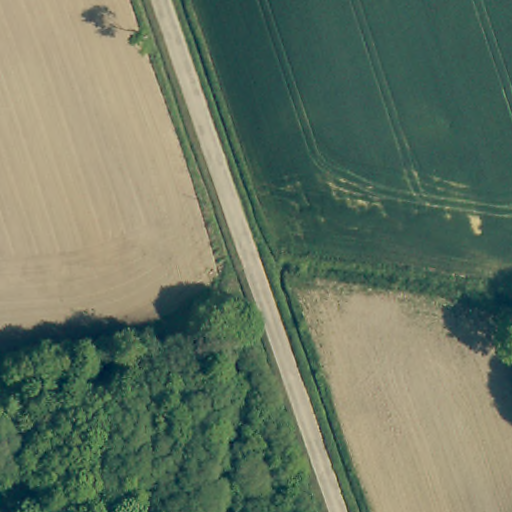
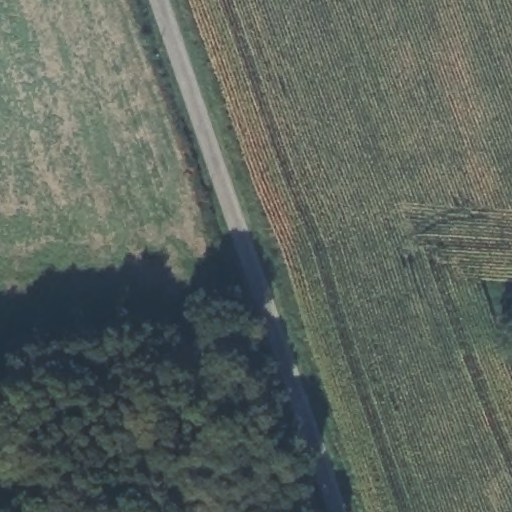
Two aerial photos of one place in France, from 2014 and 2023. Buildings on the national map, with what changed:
[]

